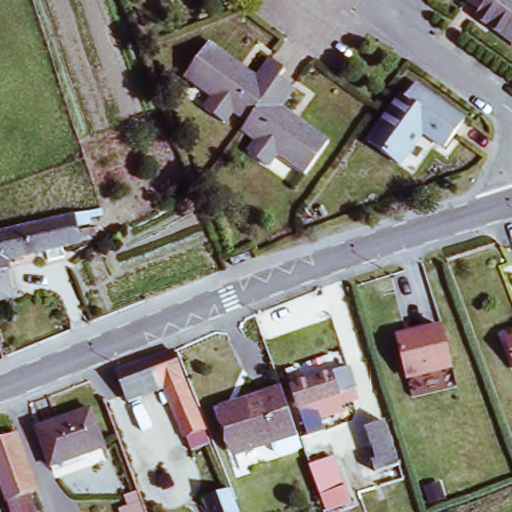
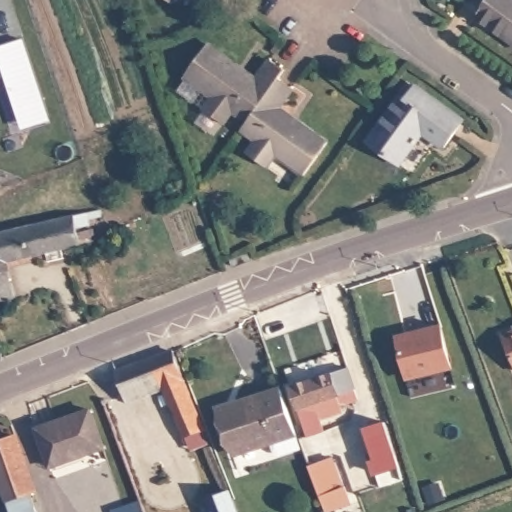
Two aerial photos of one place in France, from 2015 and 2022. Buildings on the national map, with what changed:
unchanged [(512,42),(471,11),(474,7),(465,0),(512,0),(512,42)]
new [(23,127),(5,77),(0,79),(0,47),(24,39),(51,121),(23,127)]
unchanged [(233,112),(224,124),(204,110),(214,97),(186,77),(209,46),(259,81),(273,62),(284,71),(279,78),(248,122),(233,112)]
unchanged [(279,107),(328,141),(304,173),(276,153),(267,166),(248,152),(258,140),(242,129),(248,122),(279,78),(293,88),(279,107)]
unchanged [(424,131),(399,164),(368,141),(403,95),(407,98),(416,86),(464,121),(445,146),(424,131)]
unchanged [(89,214),(90,222),(74,225),(77,236),(88,234),(91,247),(72,251),(73,257),(53,262),(51,256),(5,269),(15,303),(0,308),(0,236),(89,214)]
unchanged [(399,376),(391,337),(434,328),(443,366),(399,376)]
unchanged [(512,337),(512,376),(499,342),(512,337)]
unchanged [(208,512),(183,440),(190,437),(172,389),(178,387),(174,379),(138,393),(129,367),(179,348),(238,512),(208,512)]
unchanged [(344,371),(353,401),(335,407),(336,412),(313,420),(319,440),(303,447),(300,439),(304,437),(289,386),(328,375),(344,371)]
unchanged [(219,408),(280,388),(282,395),(294,430),(232,449),(219,408)]
unchanged [(50,464),(38,425),(86,408),(99,447),(50,464)]
unchanged [(377,456),(369,430),(389,424),(406,480),(388,486),(384,474),(379,476),(373,457),(377,456)]
unchanged [(4,510),(0,499),(0,444),(11,440),(32,501),(29,501),(4,510)]
unchanged [(337,489),(343,487),(348,501),(326,509),(319,493),(316,494),(306,466),(309,465),(304,453),(311,451),(316,463),(326,460),(337,489)]
unchanged [(138,500),(134,490),(146,485),(155,512),(130,512),(128,503),(138,500)]
unchanged [(29,501),(32,512),(5,512),(4,510),(29,501)]

